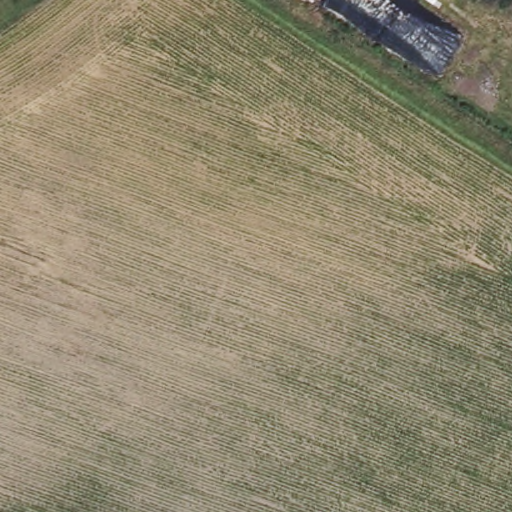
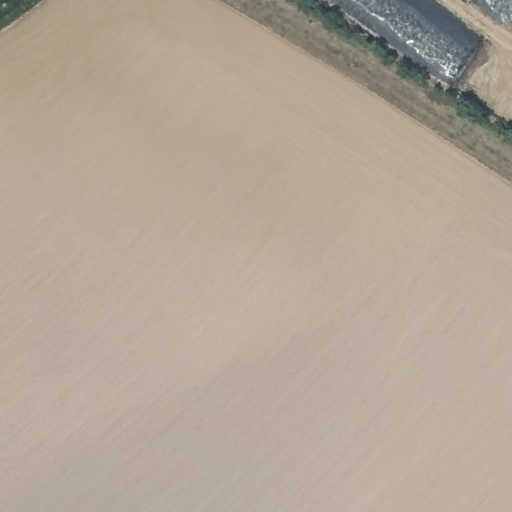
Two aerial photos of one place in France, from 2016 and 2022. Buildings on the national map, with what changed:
[]

